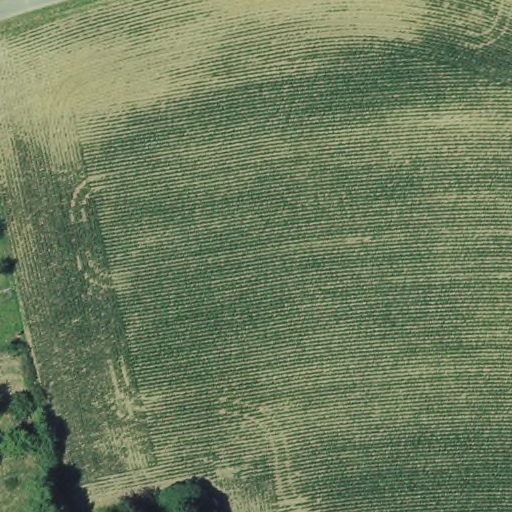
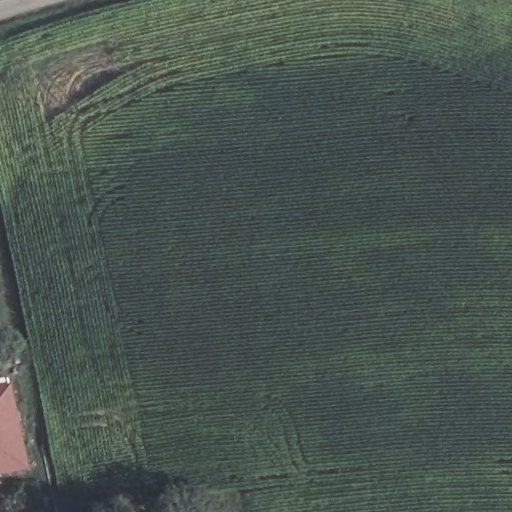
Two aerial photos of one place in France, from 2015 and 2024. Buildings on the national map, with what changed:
new [(11,386),(15,385),(32,472),(0,478),(0,381),(10,379),(11,386)]

